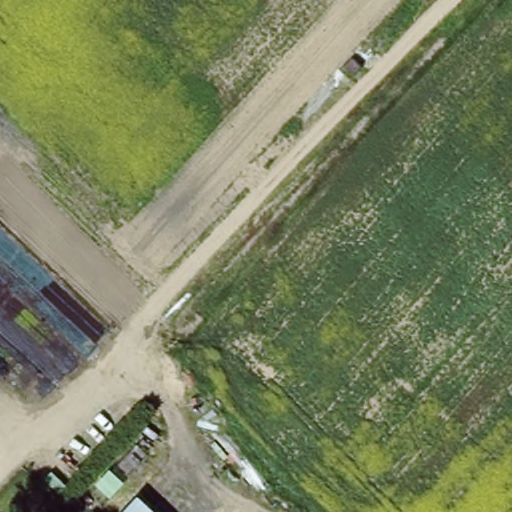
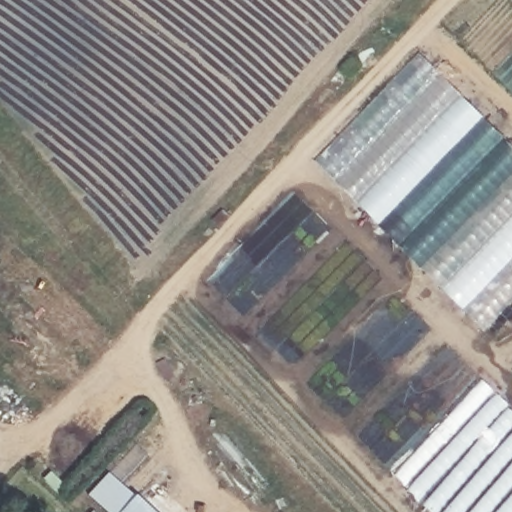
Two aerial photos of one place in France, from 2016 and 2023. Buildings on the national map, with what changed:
unchanged [(369,64),(357,75),(350,67),(360,57),(369,64)]
new [(484,333),(359,204),(462,97),(512,147),(512,304),(484,333)]
new [(429,512),(394,475),(483,380),(512,410),(512,512),(429,512)]
unchanged [(156,512),(119,512),(137,495),(156,512)]

